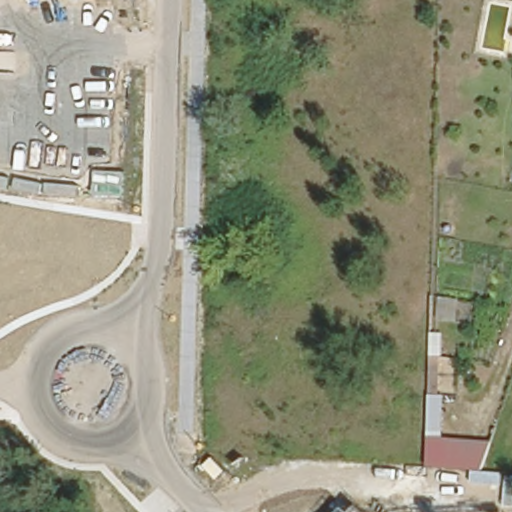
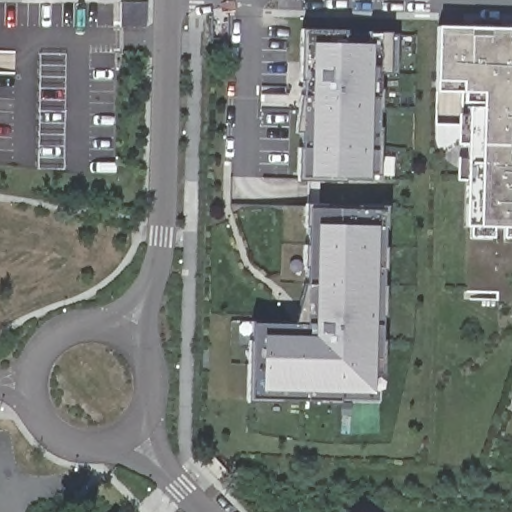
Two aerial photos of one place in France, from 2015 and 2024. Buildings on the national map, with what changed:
new [(471,95),(437,93),(439,26),(512,28),(512,228),(469,226),(471,95)]
new [(389,73),(382,73),(380,181),(297,180),(301,29),(390,32),(389,73)]
new [(382,403),(250,401),(251,322),(306,322),(308,205),(386,207),(382,403)]
demolished [(483,471),(429,467),(431,394),(447,394),(446,438),(491,442),(483,471)]

